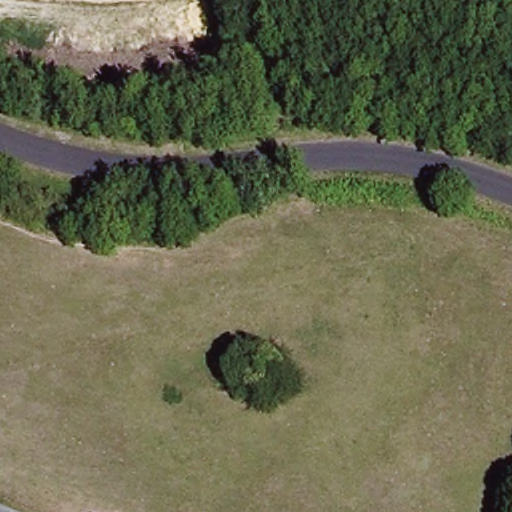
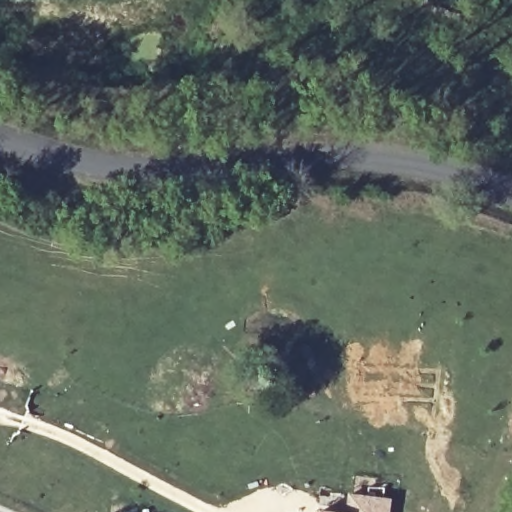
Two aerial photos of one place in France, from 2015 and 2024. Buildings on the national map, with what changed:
new [(348,495),(391,500),(389,512),(346,512),(348,495)]
new [(317,511),(322,512),(317,512),(317,511)]

